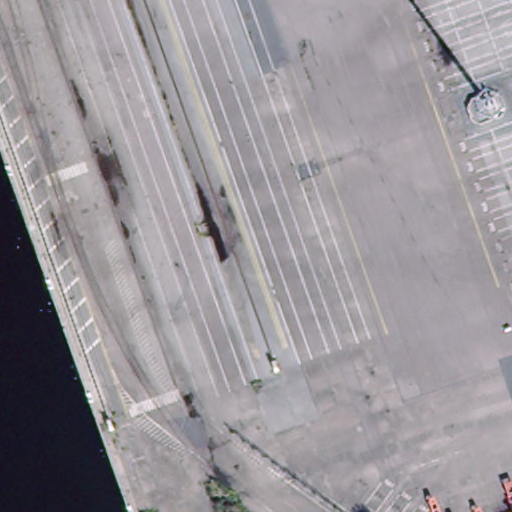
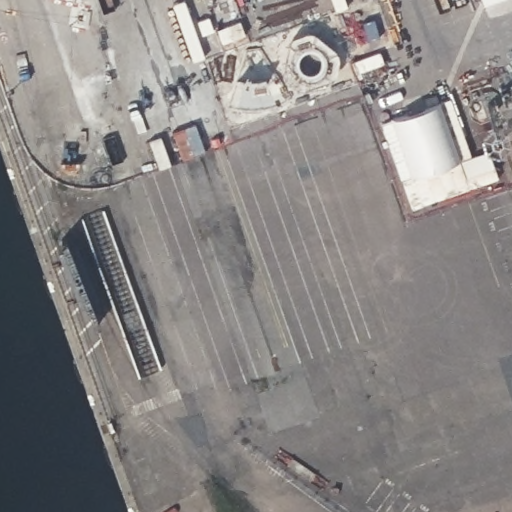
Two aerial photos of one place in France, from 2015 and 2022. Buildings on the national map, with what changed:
new [(482,0),(499,0),(483,5),(482,0)]
new [(442,107),(461,161),(422,177),(401,123),(442,107)]

